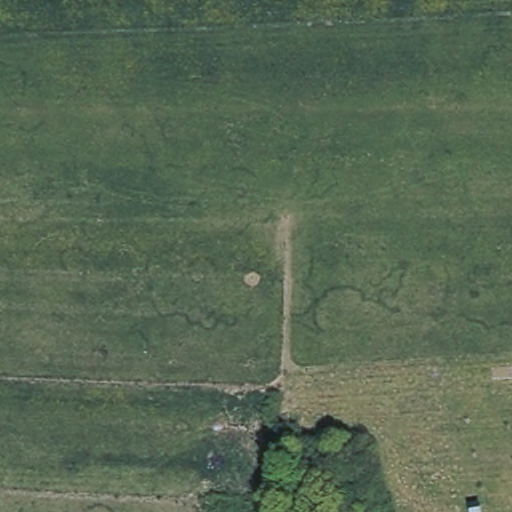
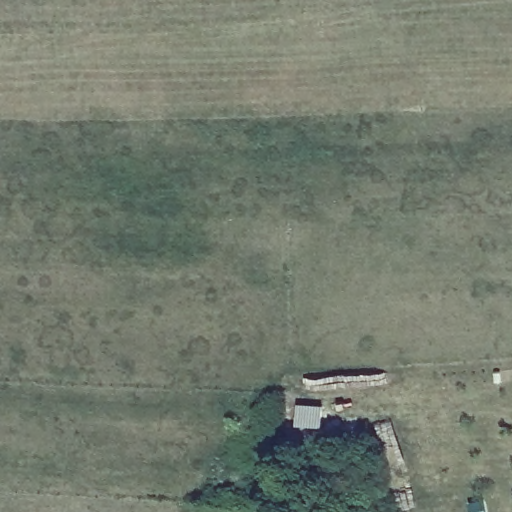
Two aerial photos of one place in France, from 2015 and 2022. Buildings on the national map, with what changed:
unchanged [(260,408),(258,433),(232,432),(233,407),(260,408)]

